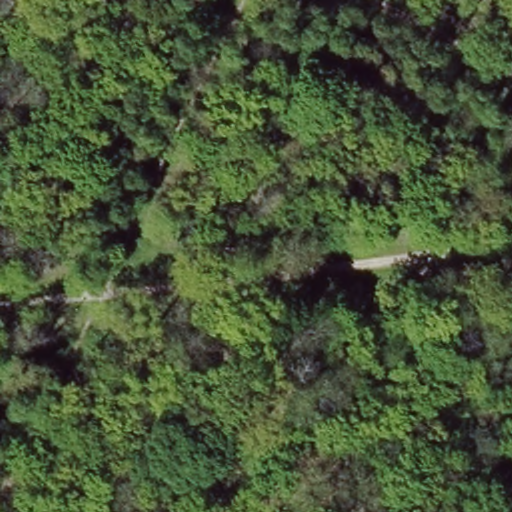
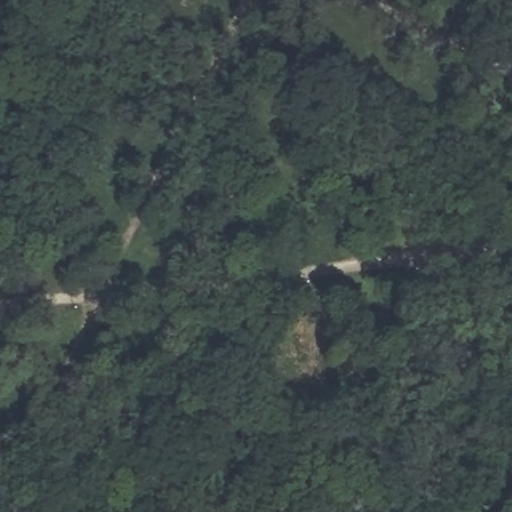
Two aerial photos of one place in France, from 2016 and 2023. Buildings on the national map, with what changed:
[]

